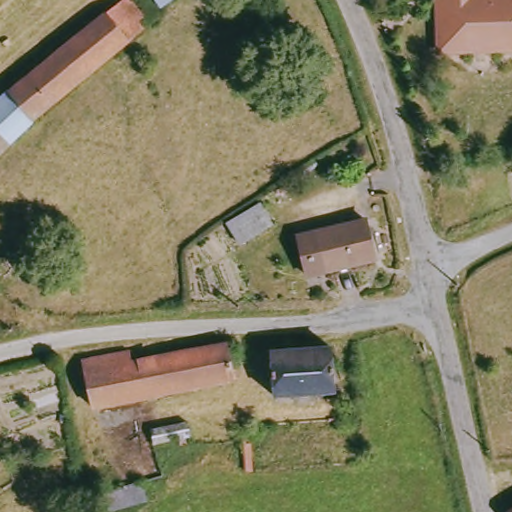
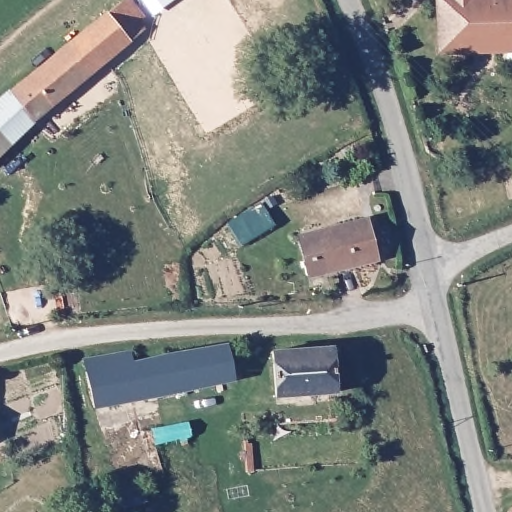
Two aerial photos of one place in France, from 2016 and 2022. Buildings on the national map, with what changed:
unchanged [(135,0),(152,20),(144,28),(148,32),(40,123),(17,100),(124,6),(131,0),(135,0)]
unchanged [(447,0),(512,0),(512,46),(448,46),(447,0)]
unchanged [(40,123),(0,159),(0,115),(17,100),(40,123)]
unchanged [(263,221),(233,241),(217,218),(247,196),(263,221)]
unchanged [(376,259),(308,275),(300,236),(367,220),(376,259)]
unchanged [(241,355),(246,380),(236,382),(97,412),(87,362),(133,352),(136,365),(229,345),(231,356),(241,355)]
unchanged [(342,390),(280,396),(276,351),(338,346),(342,390)]
unchanged [(193,441),(183,443),(182,436),(151,440),(149,425),(189,420),(193,441)]

